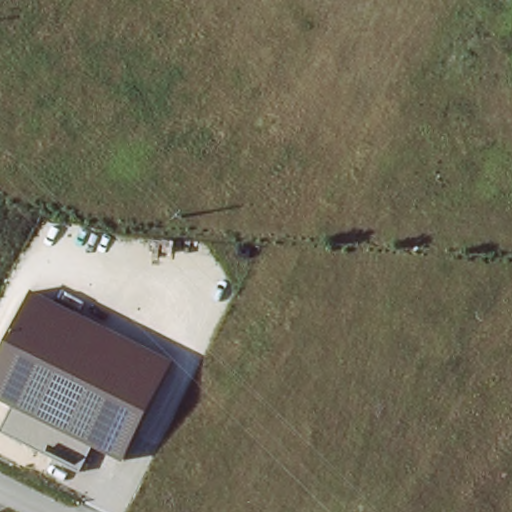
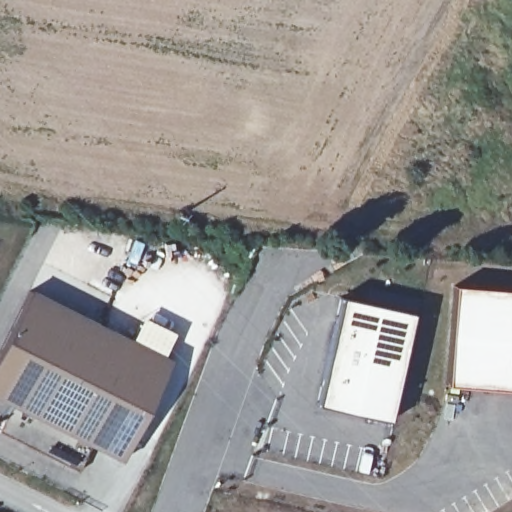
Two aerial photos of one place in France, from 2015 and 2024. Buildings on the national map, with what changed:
new [(512,390),(445,385),(455,287),(512,292),(512,390)]
unchanged [(171,363),(122,460),(92,445),(78,467),(0,430),(14,406),(0,400),(0,352),(30,292),(171,363)]
new [(412,312),(388,420),(315,405),(340,297),(412,312)]

